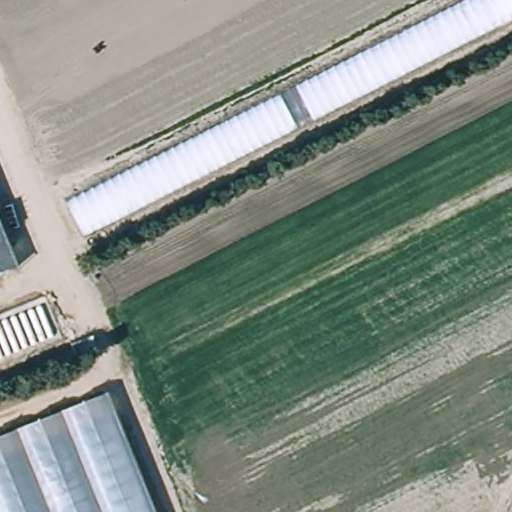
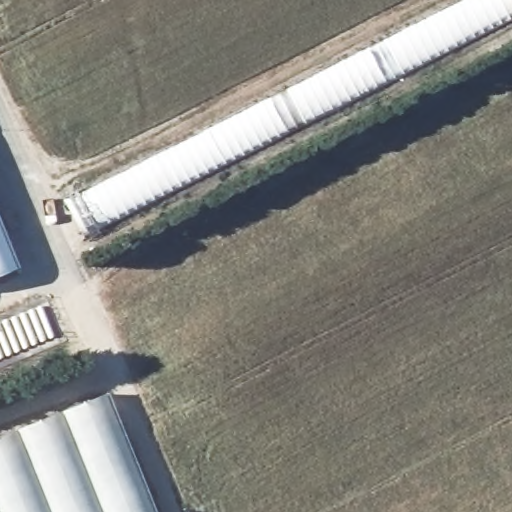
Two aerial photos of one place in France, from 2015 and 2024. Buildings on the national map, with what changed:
unchanged [(83,235),(68,204),(468,0),(512,0),(512,18),(83,235)]
unchanged [(0,273),(0,231),(15,267),(0,273)]
unchanged [(0,512),(0,438),(106,396),(152,512),(0,512)]

